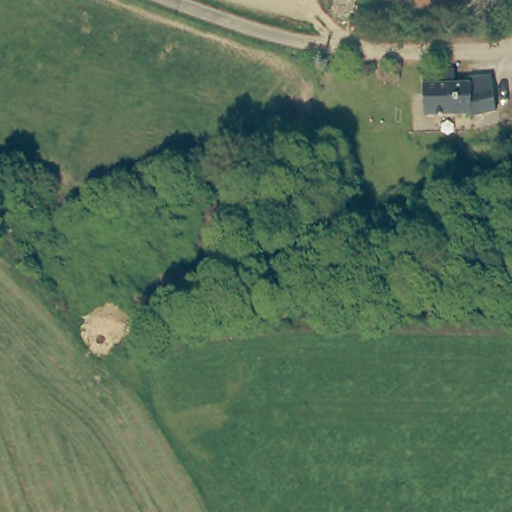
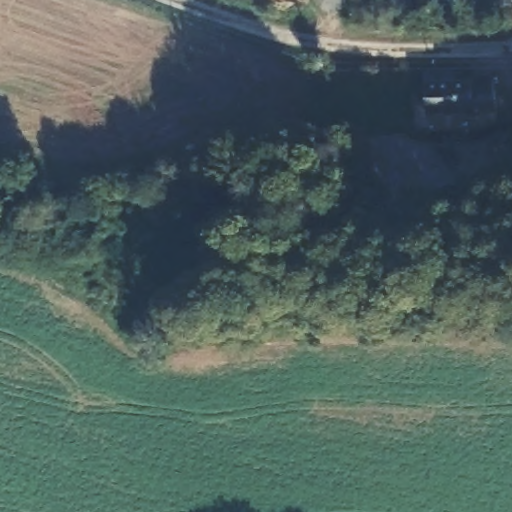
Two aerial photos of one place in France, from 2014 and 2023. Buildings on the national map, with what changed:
unchanged [(439,110),(438,85),(479,83),(479,73),(503,72),(505,109),(495,112),(484,113),(480,113),(480,107),(439,110)]

